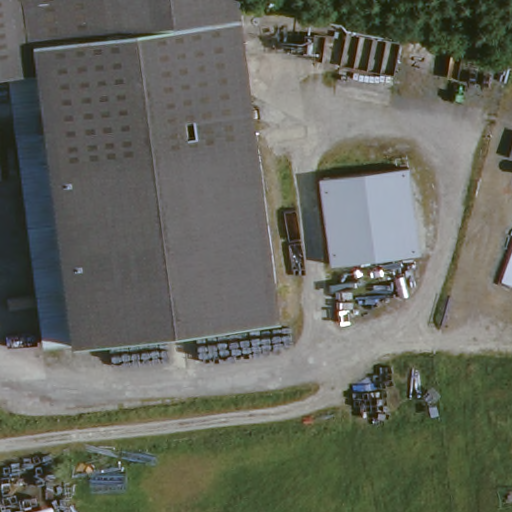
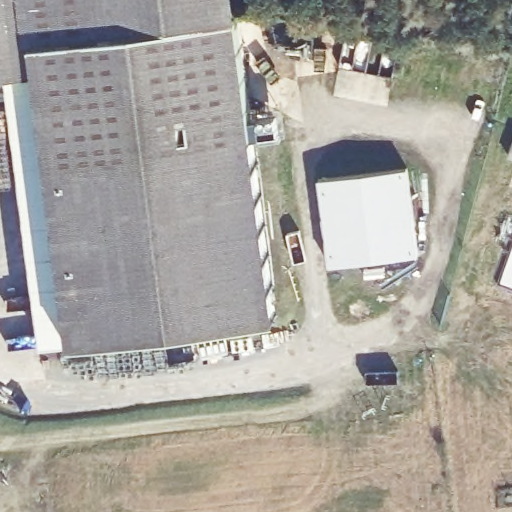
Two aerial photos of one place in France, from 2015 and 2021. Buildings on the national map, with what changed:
unchanged [(276,309),(76,335),(45,339),(9,69),(0,70),(0,0),(239,0),(276,309)]
unchanged [(408,165),(421,257),(332,268),(319,177),(408,165)]

